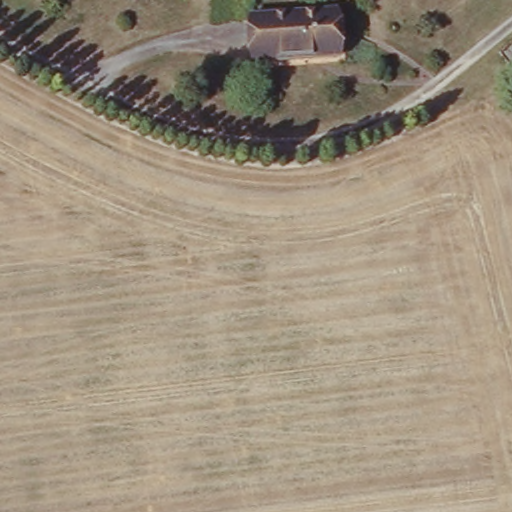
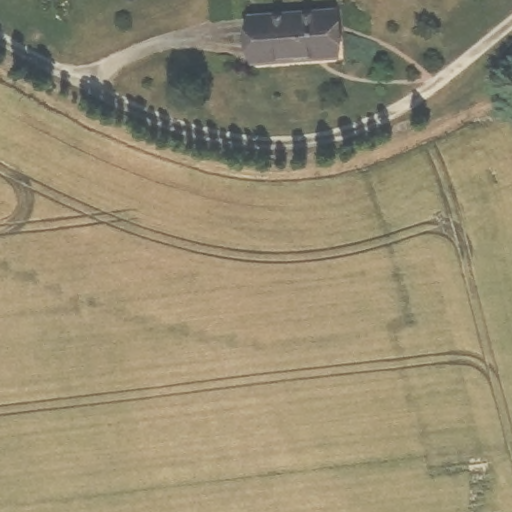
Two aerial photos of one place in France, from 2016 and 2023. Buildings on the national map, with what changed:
unchanged [(336,16),(339,65),(259,72),(253,22),(336,16)]

